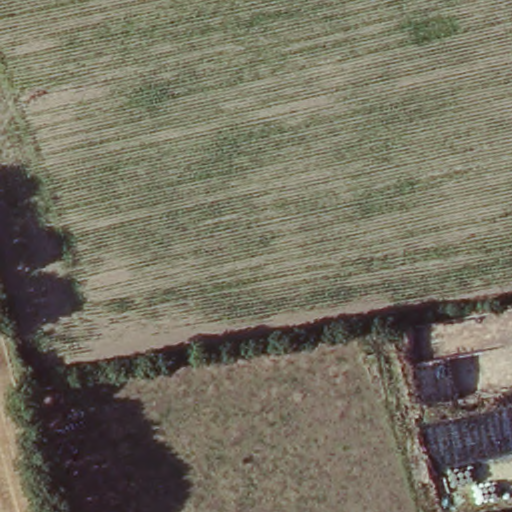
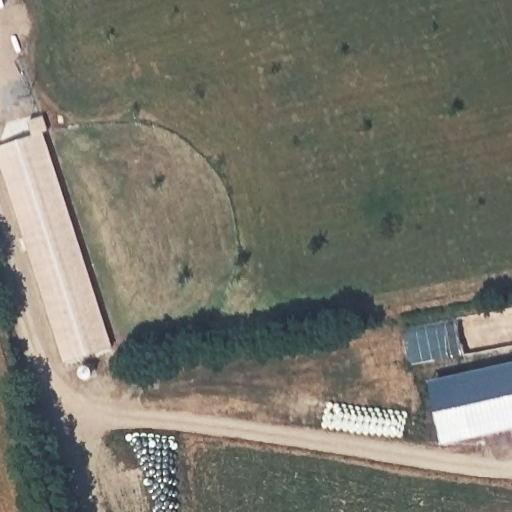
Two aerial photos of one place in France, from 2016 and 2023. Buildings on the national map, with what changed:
new [(116,338),(68,358),(0,157),(0,132),(44,119),(116,338)]
new [(446,444),(432,381),(512,364),(512,430),(446,444)]

